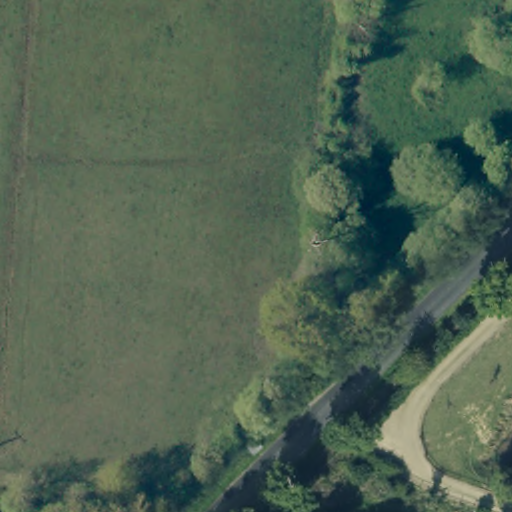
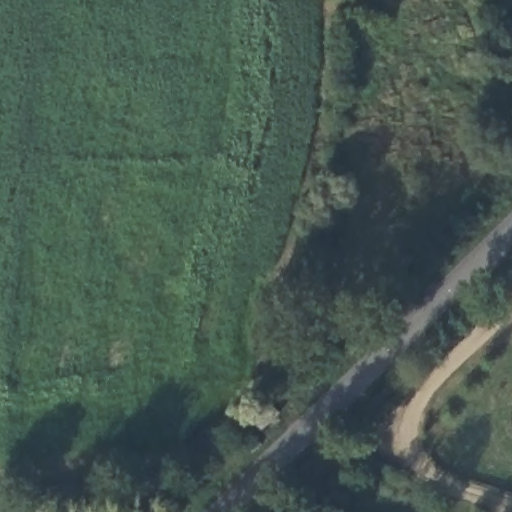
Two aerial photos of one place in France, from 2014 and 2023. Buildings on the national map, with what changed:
unchanged [(281,416),(258,440),(242,428),(266,405),(281,416)]

